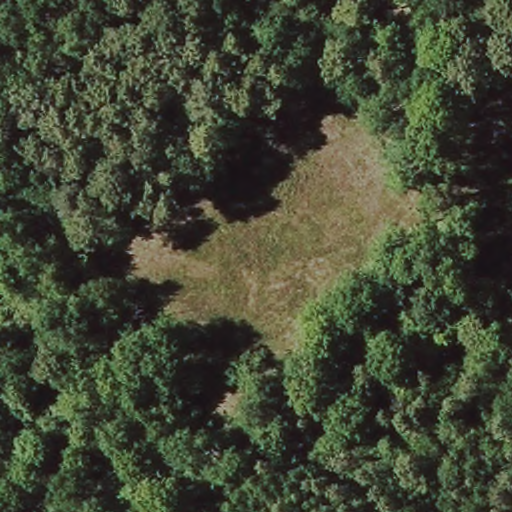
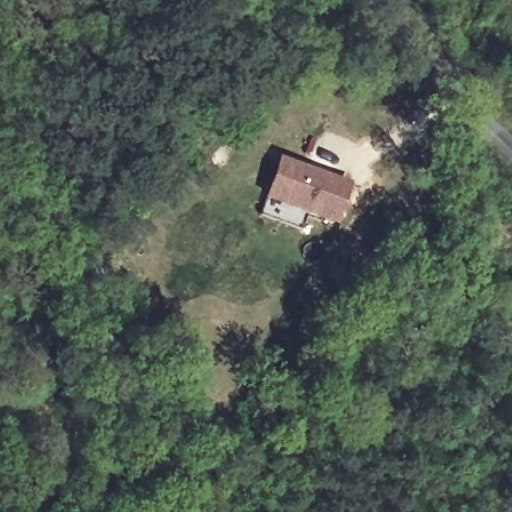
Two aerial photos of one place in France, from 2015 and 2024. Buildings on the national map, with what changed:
new [(278,159),(349,184),(335,227),(263,200),(278,159)]

